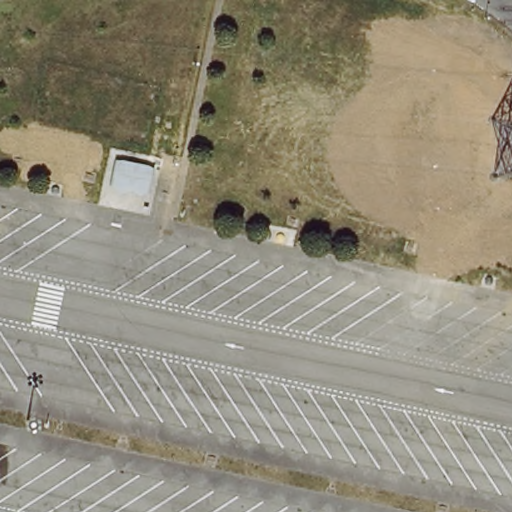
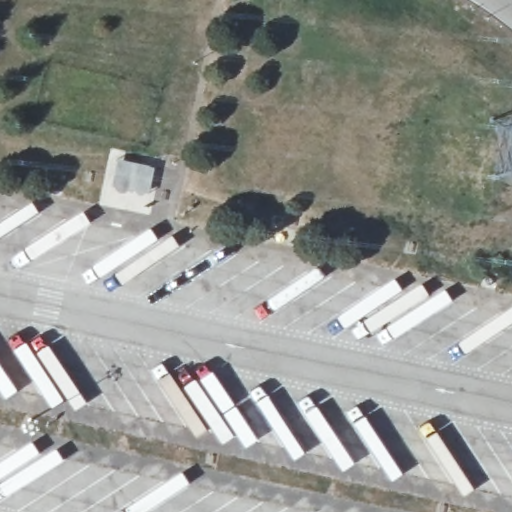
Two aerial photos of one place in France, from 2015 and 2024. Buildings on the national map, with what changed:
unchanged [(159,166),(149,204),(103,191),(110,155),(159,166)]

